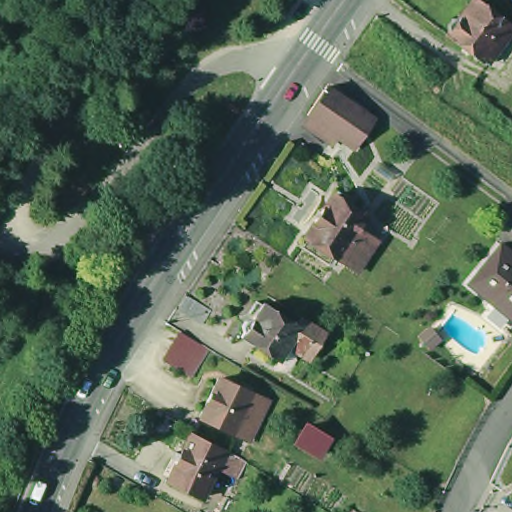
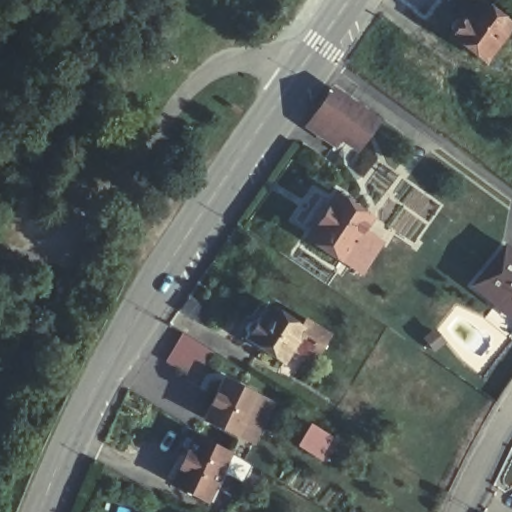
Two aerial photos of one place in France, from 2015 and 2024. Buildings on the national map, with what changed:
unchanged [(487,62),(486,64),(476,56),(473,60),(466,55),(468,50),(452,39),(453,35),(451,32),(452,29),(458,21),(464,21),(478,1),(512,27),(512,28),(512,40),(494,67),(487,62)]
unchanged [(326,88),(374,120),(354,148),(308,115),(326,88)]
unchanged [(344,269),(334,262),(302,241),(330,200),(361,223),(353,235),(363,242),(344,269)]
unchanged [(471,287),(506,249),(512,254),(512,325),(512,326),(471,287)]
unchanged [(184,310),(193,295),(219,311),(211,326),(184,310)]
unchanged [(329,335),(316,359),(313,357),(310,361),(305,357),(307,354),(294,346),(284,360),(247,337),(249,333),(244,329),(248,324),(253,328),(268,305),(303,325),(306,320),(329,335)]
unchanged [(205,348),(213,352),(196,380),(166,362),(185,335),(205,348)]
unchanged [(249,443),(236,437),(198,420),(217,381),(253,398),(268,405),(249,443)]
unchanged [(293,443),(303,426),(324,439),(314,456),(293,443)]
unchanged [(206,505),(171,488),(192,441),(227,456),(206,505)]

